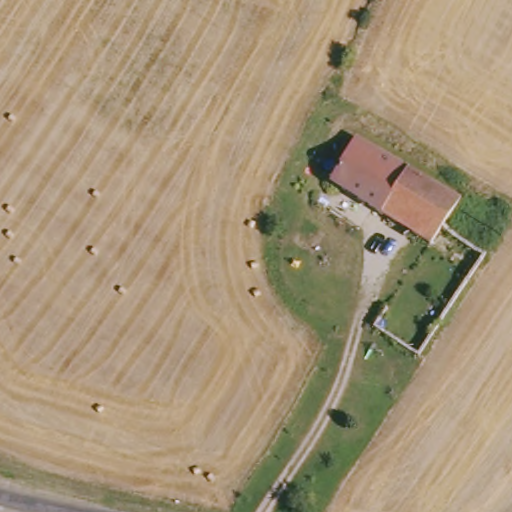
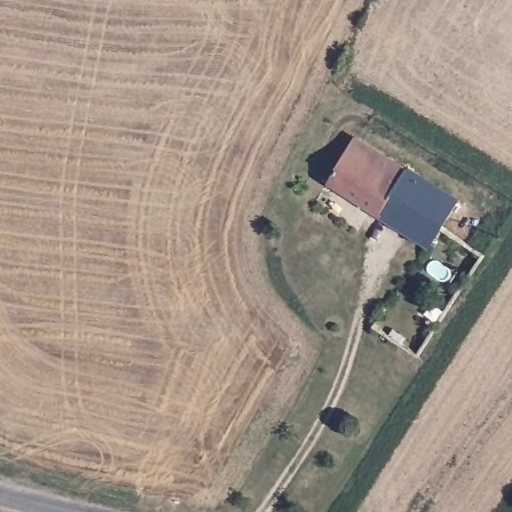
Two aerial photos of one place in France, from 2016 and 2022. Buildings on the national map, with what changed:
unchanged [(355,139),(461,204),(447,232),(435,253),(329,189),(355,139)]

